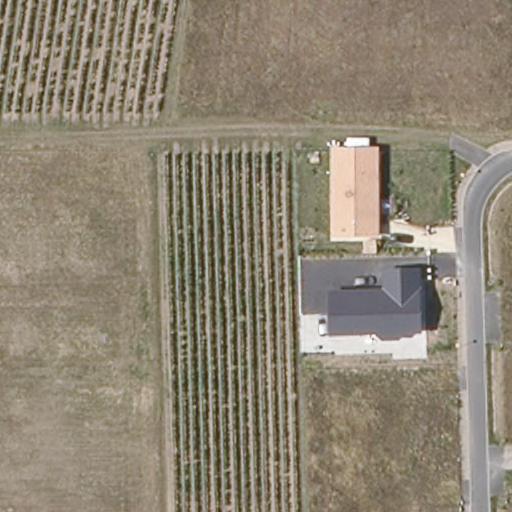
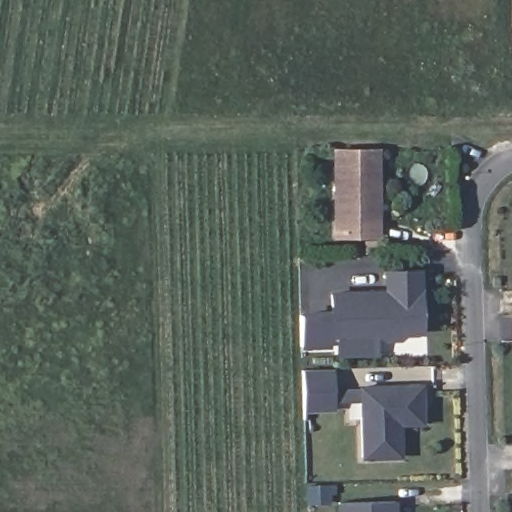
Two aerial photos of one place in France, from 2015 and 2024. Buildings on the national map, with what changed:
unchanged [(380,238),(332,239),(332,149),(380,147),(380,238)]
unchanged [(330,338),(329,292),(383,290),(383,271),(421,270),(422,335),(404,336),(399,341),(381,341),(375,335),(377,356),(337,358),(337,337),(330,338)]
demolished [(80,371),(77,339),(94,338),(98,370),(80,371)]
new [(297,413),(296,408),(295,378),(294,373),(328,372),(329,377),(331,406),(331,411),(297,413)]
new [(420,412),(420,425),(398,425),(401,458),(361,461),(357,389),(418,386),(420,412)]
new [(338,512),(337,505),(394,502),(394,512),(338,512)]

